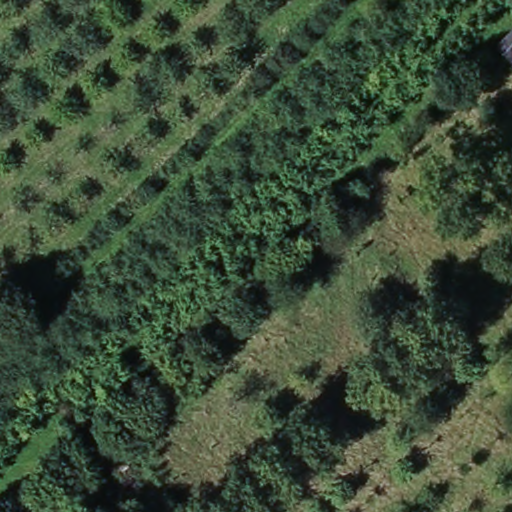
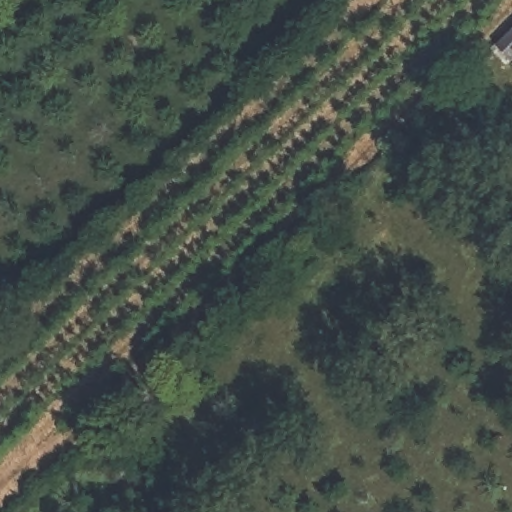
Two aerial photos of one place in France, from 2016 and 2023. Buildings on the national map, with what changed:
unchanged [(512,63),(497,47),(512,33),(512,63)]

